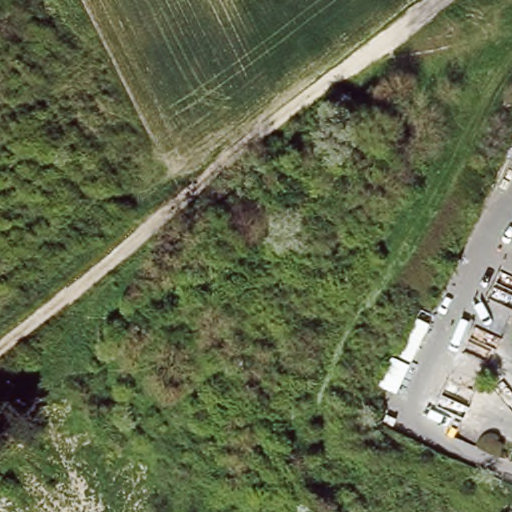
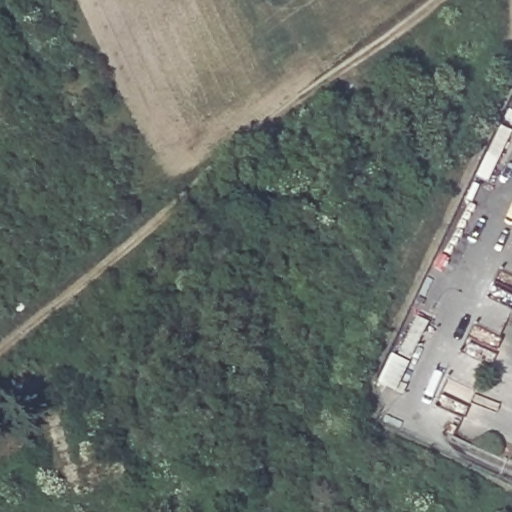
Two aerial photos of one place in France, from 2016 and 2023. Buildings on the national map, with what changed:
unchanged [(429,335),(398,390),(382,385),(410,326),(429,335)]

